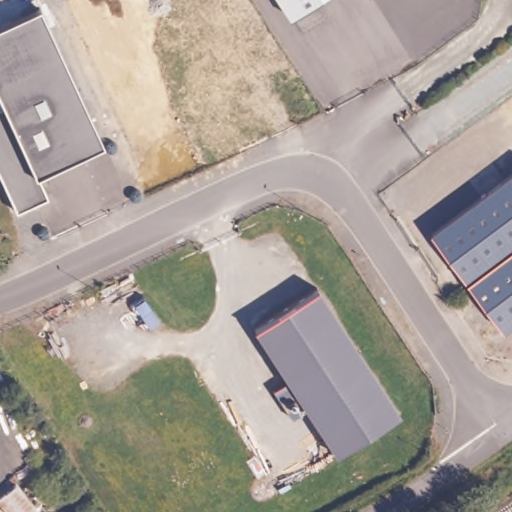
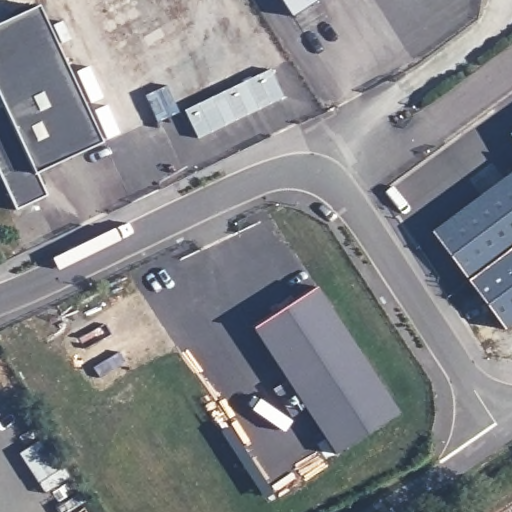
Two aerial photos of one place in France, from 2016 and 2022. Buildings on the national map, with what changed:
unchanged [(291,17),(280,0),(317,0),(291,17)]
unchanged [(0,81),(0,27),(40,8),(60,53),(21,71),(0,81)]
unchanged [(34,177),(45,199),(40,201),(15,213),(0,182),(0,108),(2,107),(0,103),(0,81),(21,71),(60,53),(102,145),(79,156),(34,177)]
new [(197,138),(184,109),(271,68),(284,96),(197,138)]
unchanged [(463,274),(435,238),(438,236),(512,178),(512,254),(472,286),(463,274)]
unchanged [(510,333),(472,286),(512,254),(512,332),(510,333)]
unchanged [(398,412),(335,454),(316,423),(302,433),(272,388),(286,379),(252,326),(315,285),(398,412)]

